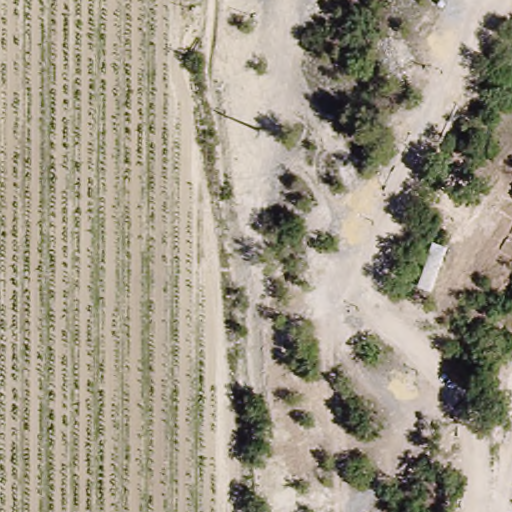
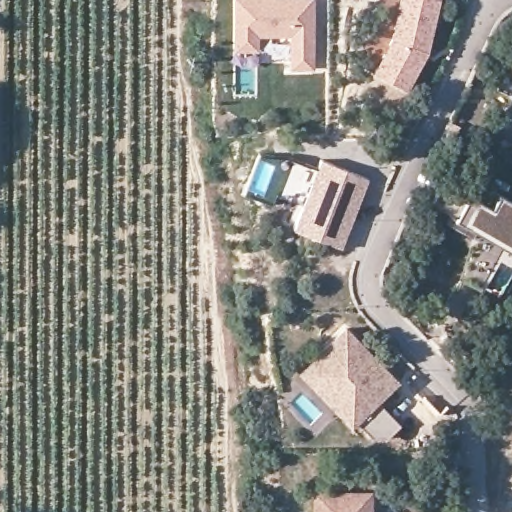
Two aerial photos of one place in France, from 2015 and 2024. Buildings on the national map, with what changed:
new [(287,68),(287,36),(262,36),(262,52),(236,52),(236,0),(309,0),(309,68),(287,68)]
new [(391,38),(400,0),(435,0),(426,50),(404,88),(374,70),(391,38)]
new [(507,70),(512,59),(512,72),(507,70)]
new [(294,231),(302,207),(277,196),(292,157),(317,168),(320,161),(371,180),(343,249),(294,231)]
new [(471,184),(466,193),(487,204),(495,190),(512,200),(512,237),(506,234),(501,242),(475,228),(470,236),(443,220),(448,212),(429,202),(447,170),(471,184)]
new [(340,329),(393,382),(374,402),(396,425),(383,438),(368,438),(336,405),(300,369),(307,362),(340,329)]
new [(310,491),(366,492),(365,512),(309,512),(310,491)]

